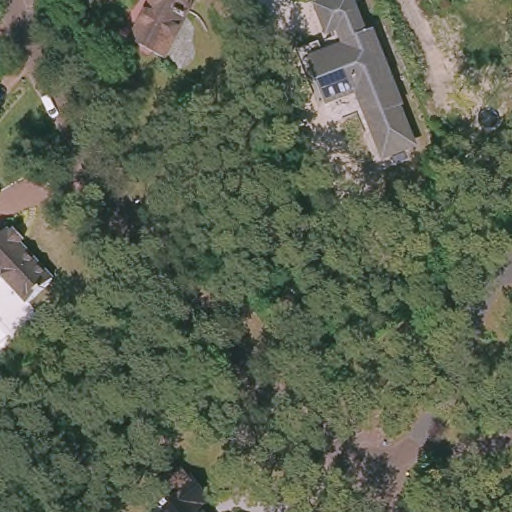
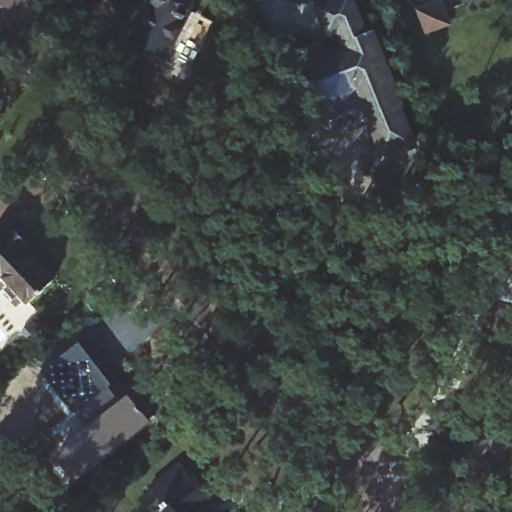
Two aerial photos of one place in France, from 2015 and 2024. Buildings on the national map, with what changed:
unchanged [(171,53),(143,39),(160,0),(197,0),(198,2),(171,53)]
unchanged [(397,111),(401,121),(406,119),(416,145),(387,155),(362,89),(328,101),(313,62),(351,47),(343,28),(333,32),(322,5),(335,0),(356,0),(369,32),(377,29),(401,90),(399,90),(397,91),(403,106),(403,109),(397,111)]
new [(426,36),(415,9),(436,0),(442,0),(451,25),(426,36)]
unchanged [(476,24),(466,0),(502,0),(507,10),(476,24)]
unchanged [(24,301),(0,274),(0,231),(5,227),(8,231),(13,227),(23,239),(17,242),(48,280),(24,301)]
new [(45,382),(40,375),(78,346),(83,353),(110,388),(72,417),(45,382)]
new [(107,390),(118,405),(127,398),(149,427),(73,485),(36,445),(74,415),(107,390)]
unchanged [(155,506),(166,498),(153,480),(182,458),(190,469),(193,467),(211,492),(201,500),(209,512),(160,512),(155,506)]

